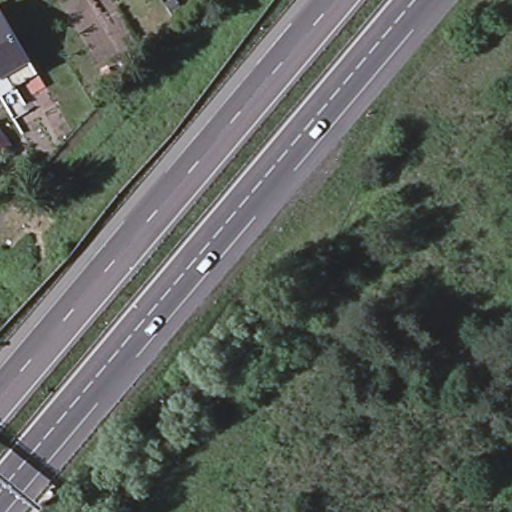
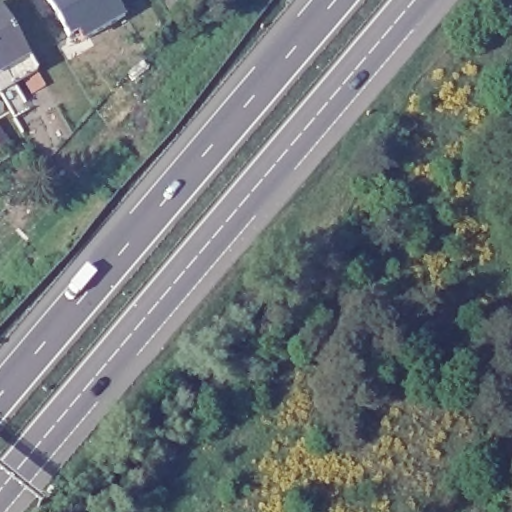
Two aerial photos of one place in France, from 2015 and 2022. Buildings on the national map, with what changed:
new [(126,16),(84,42),(79,32),(68,39),(44,0),(117,0),(126,16)]
unchanged [(43,80),(33,86),(25,72),(10,81),(25,106),(12,115),(0,94),(0,7),(35,66),(43,80)]
unchanged [(0,151),(0,133),(8,146),(0,151)]

